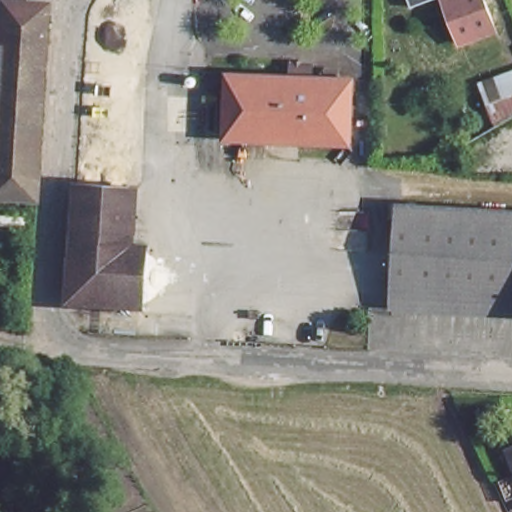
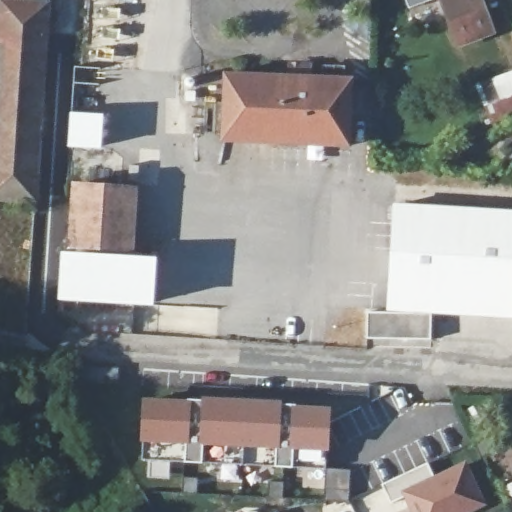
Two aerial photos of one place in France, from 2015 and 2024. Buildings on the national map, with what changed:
unchanged [(6,52),(10,7),(14,7),(14,0),(32,0),(49,1),(48,10),(53,10),(45,140),(43,164),(42,185),(0,182),(0,52),(6,52)]
unchanged [(439,0),(480,0),(491,29),(455,44),(439,0)]
unchanged [(220,136),(222,71),(347,76),(345,141),(220,136)]
unchanged [(485,111),(476,84),(505,74),(512,71),(512,113),(493,124),(485,111)]
unchanged [(133,185),(130,245),(143,246),(141,308),(63,303),(71,180),(133,185)]
unchanged [(388,307),(376,306),(381,203),(512,211),(512,315),(511,315),(388,307)]
new [(366,339),(366,312),(386,312),(386,307),(388,307),(428,309),(430,339),(366,339)]
demolished [(110,368),(147,369),(147,386),(121,388),(110,368)]
new [(141,397),(191,399),(190,442),(190,444),(184,444),(140,443),(141,397)]
new [(184,444),(190,444),(190,442),(198,442),(201,397),(282,400),(281,447),(279,447),(279,449),(275,449),(203,444),(202,463),(183,461),(184,444)]
new [(275,449),(279,449),(279,447),(281,447),(286,447),(288,404),(331,406),(329,453),(295,451),(293,468),(273,467),(275,449)]
unchanged [(512,446),(512,475),(502,450),(512,446)]
new [(403,495),(391,502),(383,484),(425,464),(432,477),(465,462),(485,504),(470,512),(411,512),(403,495)]
new [(325,467),(350,469),(349,502),(323,501),(325,467)]

